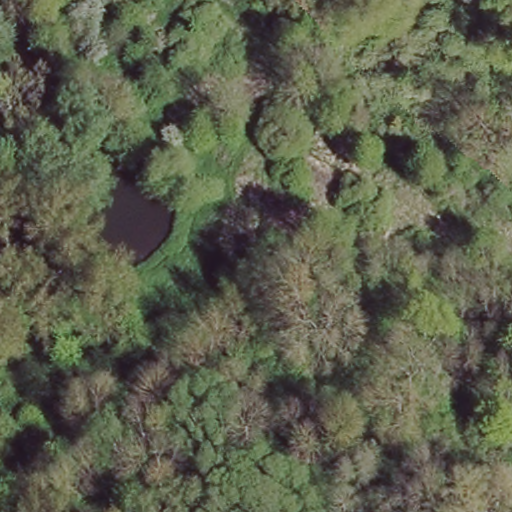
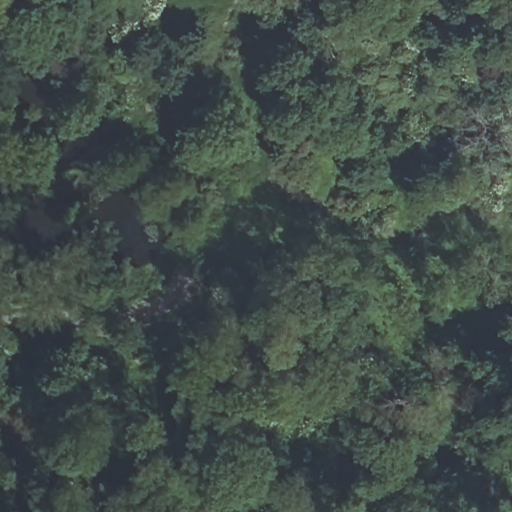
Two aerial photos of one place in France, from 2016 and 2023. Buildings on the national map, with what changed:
[]

